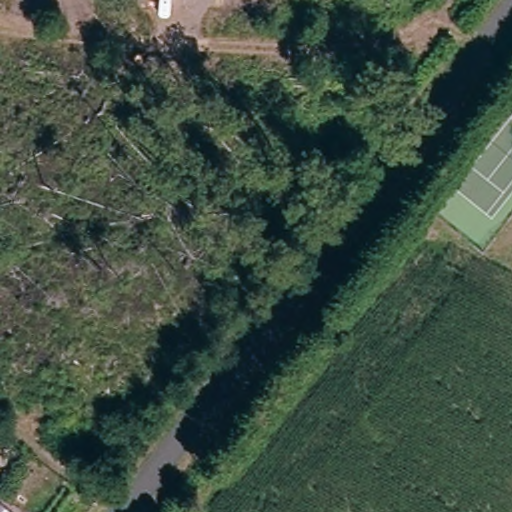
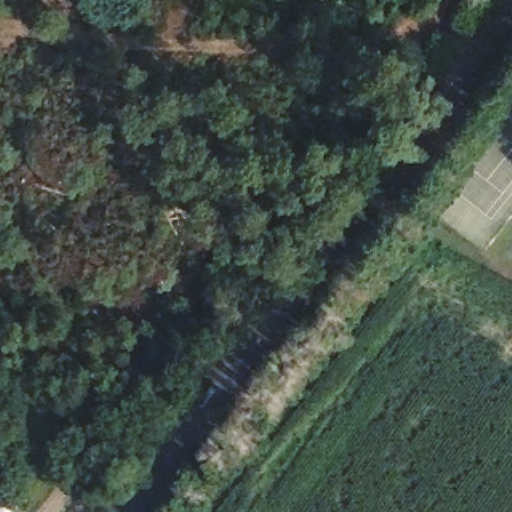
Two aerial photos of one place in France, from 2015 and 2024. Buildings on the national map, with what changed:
[]

